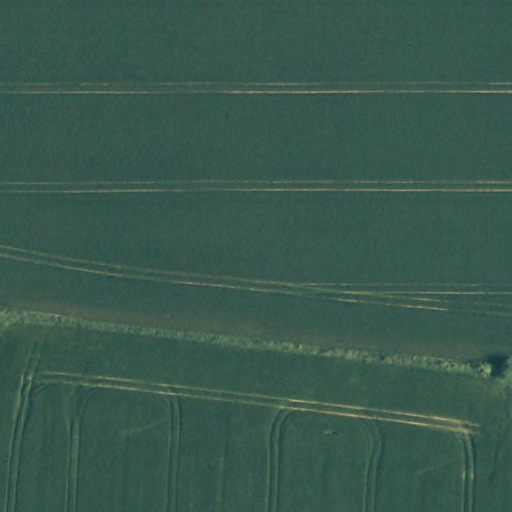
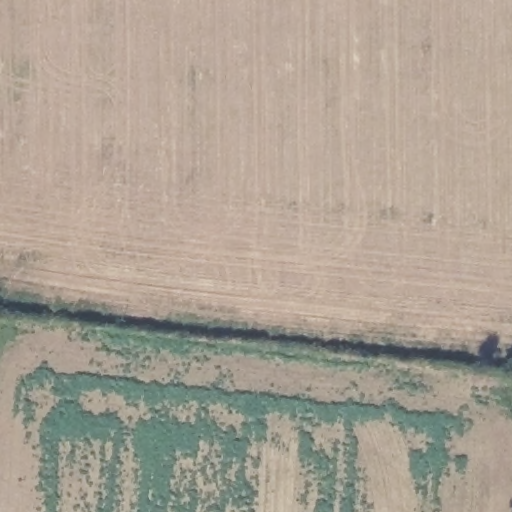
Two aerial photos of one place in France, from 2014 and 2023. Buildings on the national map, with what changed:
[]

